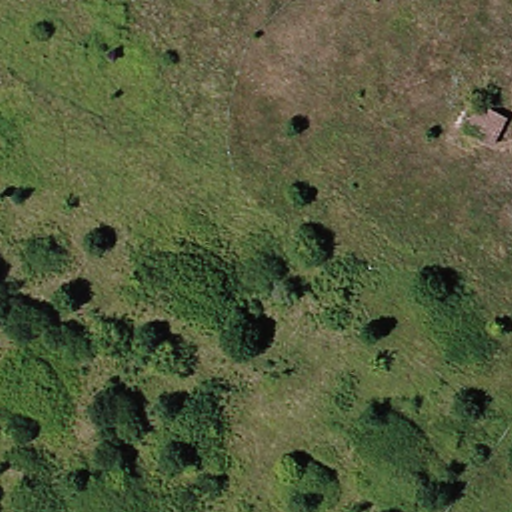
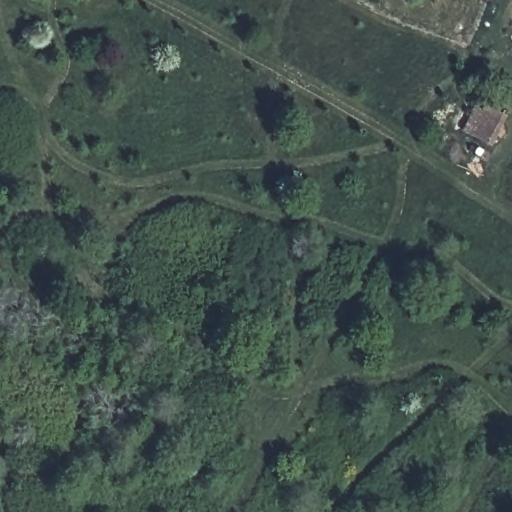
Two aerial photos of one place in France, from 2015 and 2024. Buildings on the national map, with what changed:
unchanged [(482,101),(507,114),(492,145),(465,132),(482,101)]

